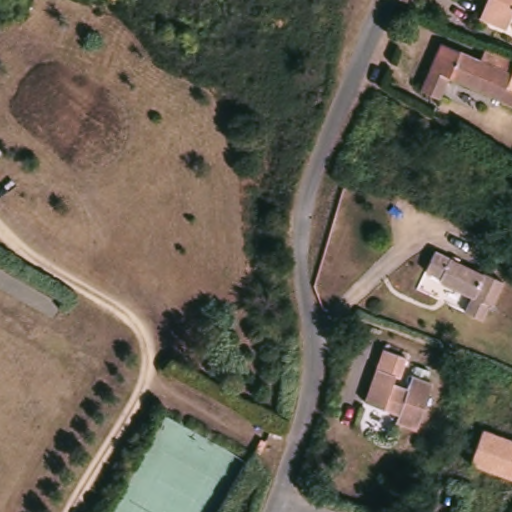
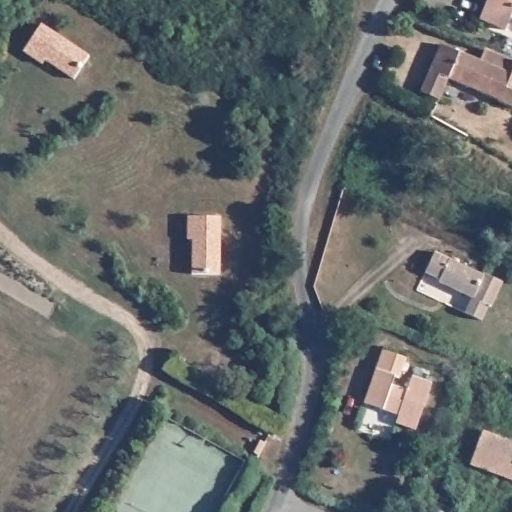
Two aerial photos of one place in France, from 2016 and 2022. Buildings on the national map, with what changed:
unchanged [(502,25),(477,14),(482,0),(512,0),(512,15),(508,13),(502,25)]
new [(45,61),(42,64),(25,52),(42,25),(89,54),(74,78),(45,61)]
unchanged [(486,46),(497,51),(512,57),(512,101),(501,97),(449,76),(440,96),(422,89),(441,42),(480,59),(486,46)]
new [(221,274),(192,272),(193,239),(187,240),(188,217),(222,217),(221,274)]
unchanged [(488,305),(487,304),(479,319),(462,311),(470,296),(437,280),(438,277),(424,270),(433,250),(481,274),(482,272),(501,281),(488,305)]
unchanged [(397,421),(398,414),(362,400),(382,350),(405,358),(397,377),(393,376),(390,384),(406,390),(412,375),(432,384),(416,429),(397,421)]
unchanged [(512,479),(470,466),(480,431),(512,441),(512,479)]

